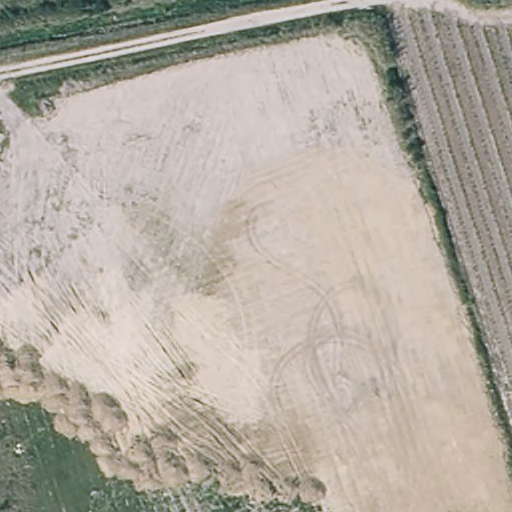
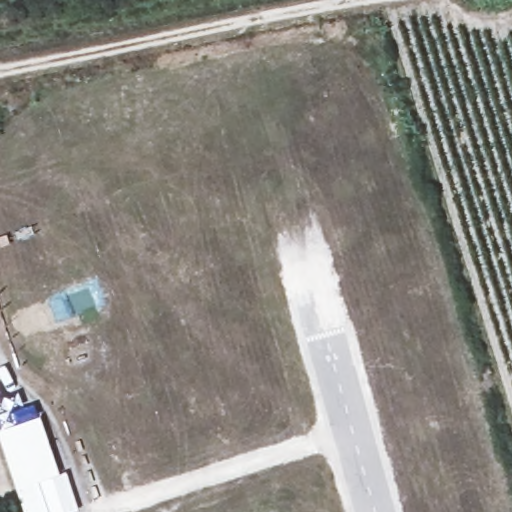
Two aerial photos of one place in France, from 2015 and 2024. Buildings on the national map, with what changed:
new [(58,475),(38,482),(48,512),(23,512),(0,442),(0,429),(39,416),(58,475)]

